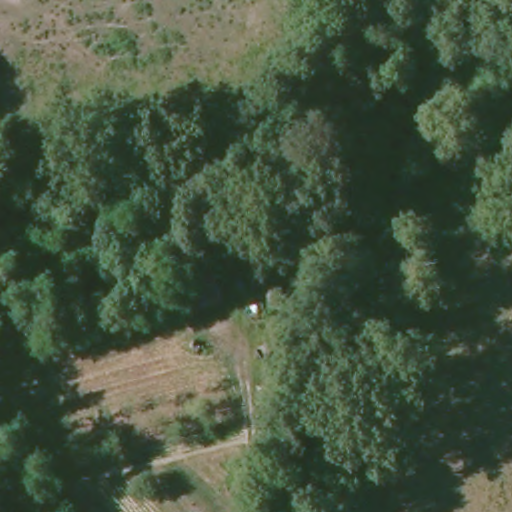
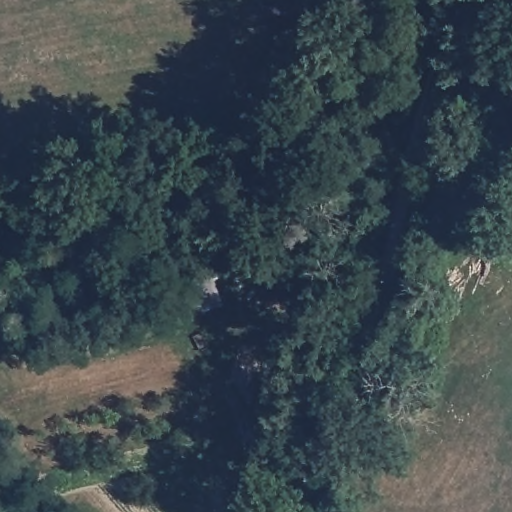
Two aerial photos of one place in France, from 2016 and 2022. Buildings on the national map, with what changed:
unchanged [(216,277),(226,304),(190,321),(179,291),(197,284),(192,270),(210,261),(216,277)]

